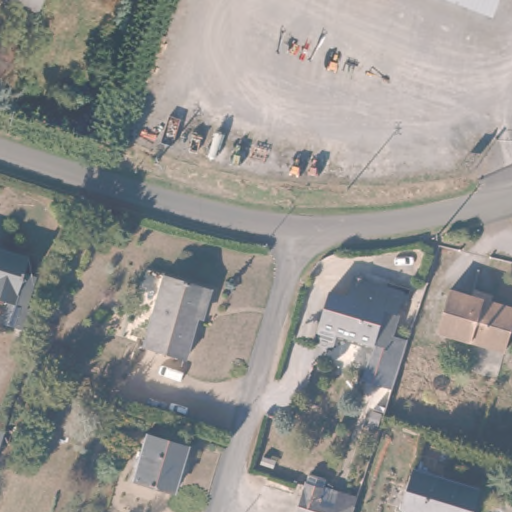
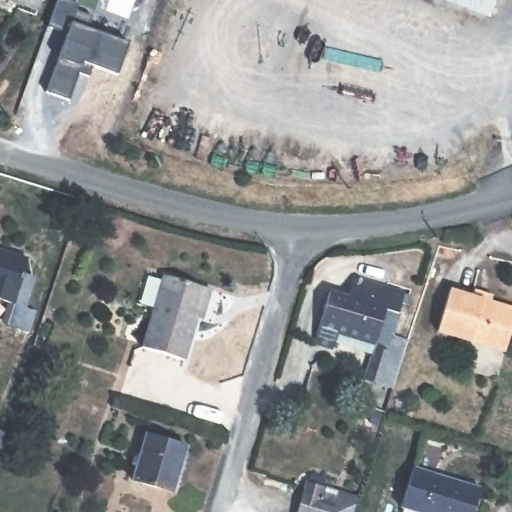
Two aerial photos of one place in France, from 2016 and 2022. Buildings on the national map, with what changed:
unchanged [(39,11),(8,0),(42,0),(39,11)]
new [(77,71),(67,99),(46,91),(56,57),(65,32),(47,25),(57,0),(67,0),(77,4),(75,9),(91,15),(85,26),(127,42),(116,74),(91,65),(87,75),(77,71)]
unchanged [(452,0),(495,0),(489,15),(452,0)]
unchanged [(5,250),(26,256),(20,276),(12,301),(7,299),(0,298),(0,251),(4,252),(5,250)]
unchanged [(12,301),(20,276),(35,280),(28,304),(38,308),(32,330),(2,322),(7,299),(12,301)]
unchanged [(211,291),(202,316),(197,314),(182,360),(142,346),(165,276),(211,291)]
unchanged [(337,340),(333,350),(316,344),(330,295),(347,301),(352,281),(402,295),(391,338),(380,335),(374,352),(337,340)]
unchanged [(505,348),(438,328),(451,288),(472,294),(475,288),(497,295),(496,301),(512,307),(512,326),(505,348)]
unchanged [(391,338),(407,343),(393,387),(366,379),(374,352),(380,335),(391,338)]
unchanged [(188,445),(174,491),(132,478),(147,432),(188,445)]
unchanged [(472,512),(424,512),(401,505),(413,465),(480,486),(472,512)]
unchanged [(354,512),(299,512),(312,474),(327,479),(325,488),(358,497),(354,512)]

